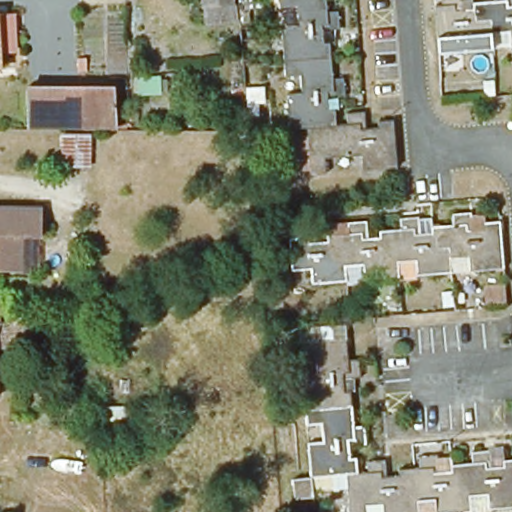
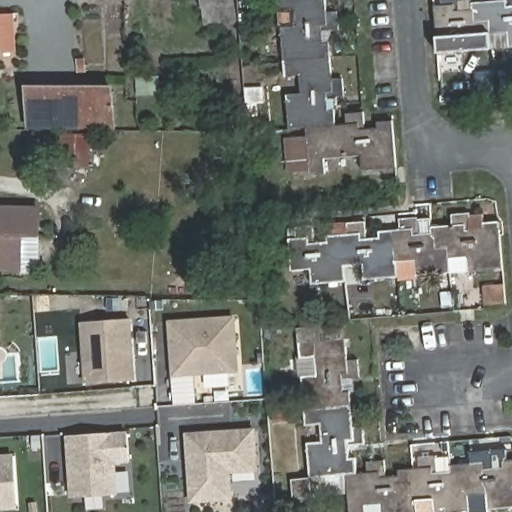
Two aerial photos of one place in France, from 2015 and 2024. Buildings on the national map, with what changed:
unchanged [(237,20),(205,24),(203,6),(202,0),(232,0),(232,3),(235,3),(237,20)]
unchanged [(327,18),(337,17),(339,33),(321,35),(322,48),(329,47),(330,61),(320,62),(283,64),(281,32),(296,31),(295,13),(280,14),(279,0),(325,0),(327,18)]
unchanged [(472,14),(473,28),(481,28),(482,27),(484,27),(490,27),(491,39),(491,53),(456,56),(438,58),(437,43),(436,35),(435,11),(441,10),(441,0),(459,0),(459,9),(472,7),(472,14)]
unchanged [(509,52),(507,38),(491,39),(490,27),(484,27),(482,27),(481,28),(473,28),(472,14),(472,7),(493,6),(493,0),(512,0),(512,5),(512,52),(509,52)]
unchanged [(9,57),(0,58),(0,19),(6,19),(9,57)]
unchanged [(320,62),(330,61),(332,83),(343,82),(344,101),(328,102),(329,114),(334,114),(335,129),(323,130),(306,132),(300,132),(290,133),(288,133),(286,99),(300,98),(300,80),(284,81),(283,64),(320,62)]
unchanged [(161,92),(136,93),(135,75),(159,74),(161,92)]
unchanged [(27,92),(112,92),(115,132),(28,131),(27,92)]
unchanged [(307,141),(306,132),(323,130),(335,129),(347,129),(346,118),(364,116),(365,133),(377,132),(377,127),(393,125),(396,159),(397,172),(362,174),(361,160),(324,163),(325,178),(310,179),(309,175),(290,176),(287,142),(307,141)]
unchanged [(89,171),(61,171),(62,139),(89,139),(89,171)]
unchanged [(39,233),(23,233),(22,269),(0,268),(0,209),(39,209),(39,233)]
unchanged [(432,238),(431,232),(432,232),(453,230),(452,219),(470,217),(472,236),(484,235),(483,227),(499,226),(504,274),(503,274),(469,276),(467,260),(449,262),(447,250),(433,251),(432,238)]
unchanged [(449,262),(450,277),(398,281),(394,234),(400,234),(400,223),(417,222),(419,239),(432,238),(433,251),(447,250),(449,262)]
unchanged [(348,238),(347,228),(365,226),(367,243),(380,242),(379,236),(394,234),(398,281),(364,284),(362,270),(345,272),(344,259),(329,260),(328,246),(328,240),(348,238)]
unchanged [(344,259),(345,272),(346,286),(311,289),(310,274),(291,275),(288,243),(296,242),(295,232),(313,231),(314,247),(328,246),(329,260),(344,259)]
unchanged [(505,286),(506,297),(507,305),(486,307),(484,289),(505,286)]
new [(233,317),(237,370),(173,375),(169,323),(233,317)]
new [(129,319),(134,380),(86,383),(82,322),(129,319)]
demolished [(36,320),(46,320),(48,344),(38,345),(36,320)]
unchanged [(300,379),(315,378),(313,361),(298,362),(297,347),(345,343),(347,365),(358,364),(360,382),(343,383),(344,396),(350,396),(351,410),(341,411),(304,414),(300,379)]
unchanged [(307,448),(321,446),(320,429),(305,430),(304,414),(341,411),(351,410),(353,432),(364,431),(365,449),(349,450),(350,463),(356,462),(357,478),(346,479),(337,479),(322,481),(311,482),(311,483),(312,502),(293,504),(292,484),(309,482),(307,448)]
new [(254,431),(256,469),(228,471),(230,497),(192,501),(187,435),(254,431)]
new [(127,433),(129,460),(114,461),(116,495),(72,498),(68,437),(127,433)]
new [(0,511),(0,454),(14,453),(17,510),(0,511)]
unchanged [(472,468),(471,457),(489,456),(491,472),(503,471),(502,465),(512,465),(512,512),(488,512),(486,500),(469,501),(468,489),(453,490),(451,470),(472,468)]
unchanged [(469,501),(470,512),(418,512),(418,509),(417,505),(415,485),(414,473),(416,473),(420,473),(419,462),(437,460),(438,471),(451,470),(453,490),(468,489),(469,501)]
unchanged [(384,465),(386,482),(398,480),(398,474),(414,473),(415,485),(417,505),(418,509),(418,512),(383,512),(382,508),(365,510),(365,512),(349,512),(346,479),(357,478),(363,477),(367,477),(366,466),(384,465)]

